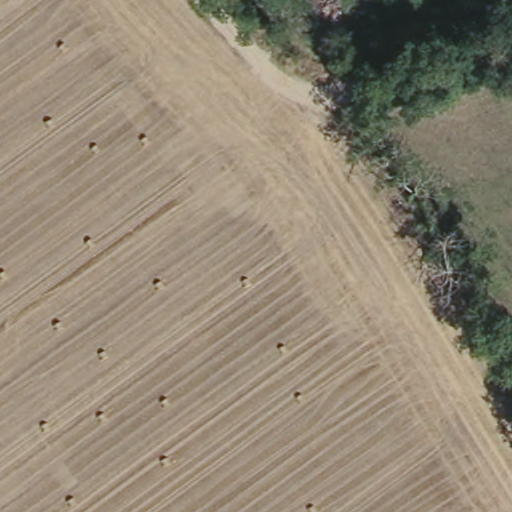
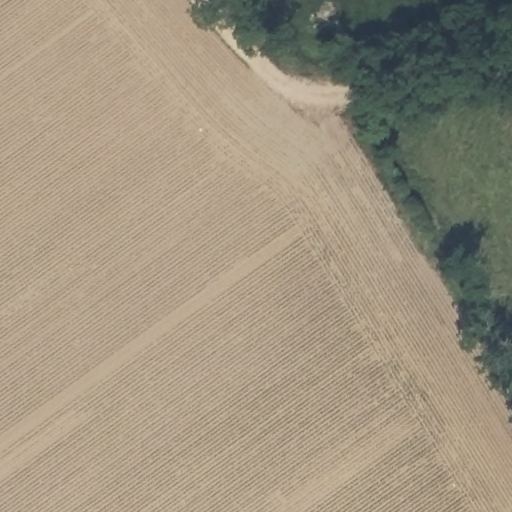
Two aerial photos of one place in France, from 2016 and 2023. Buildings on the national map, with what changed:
[]

